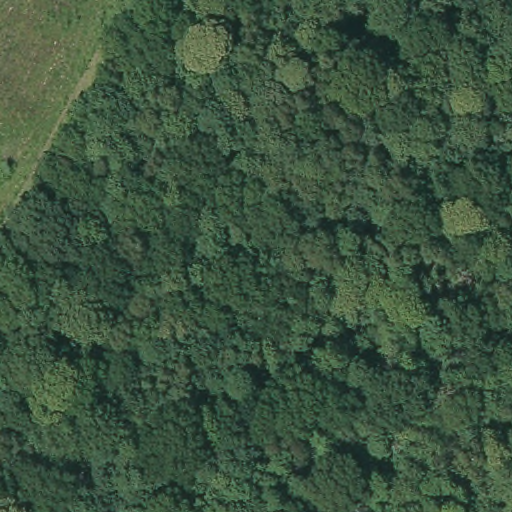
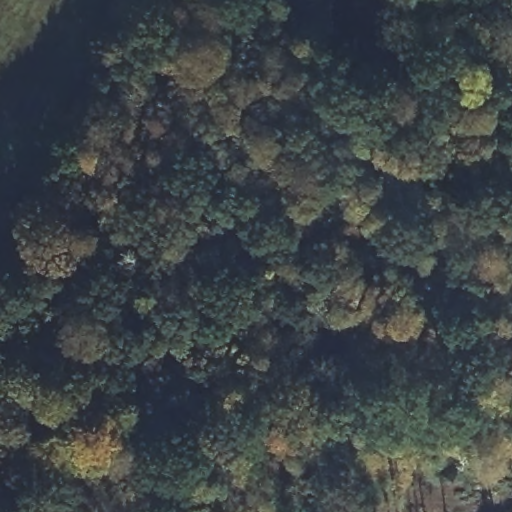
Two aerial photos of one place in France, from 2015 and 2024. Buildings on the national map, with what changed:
[]

